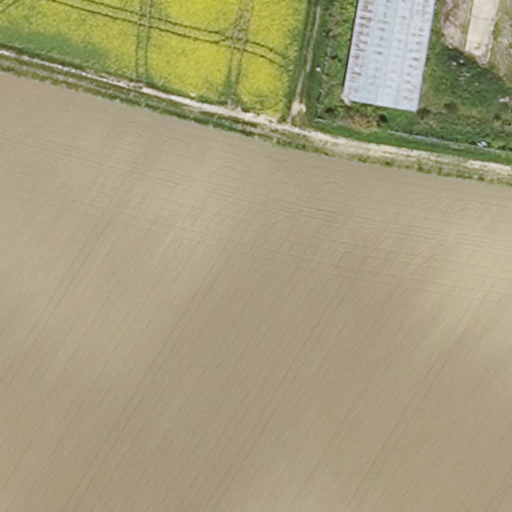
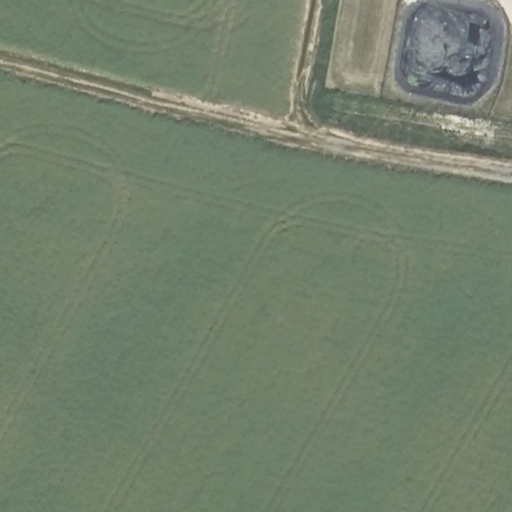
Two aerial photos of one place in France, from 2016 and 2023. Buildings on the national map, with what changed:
demolished [(418,117),(345,105),(362,0),(438,0),(418,117)]

